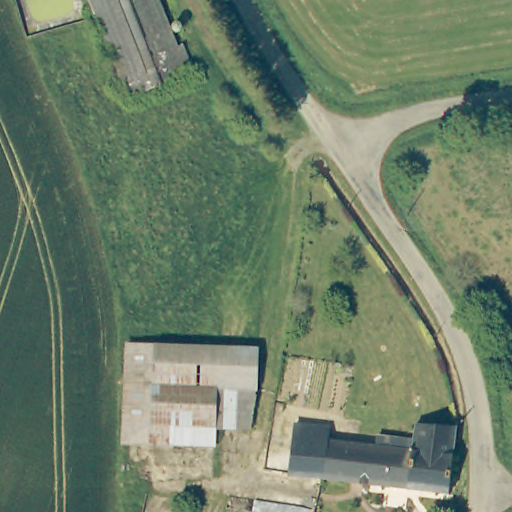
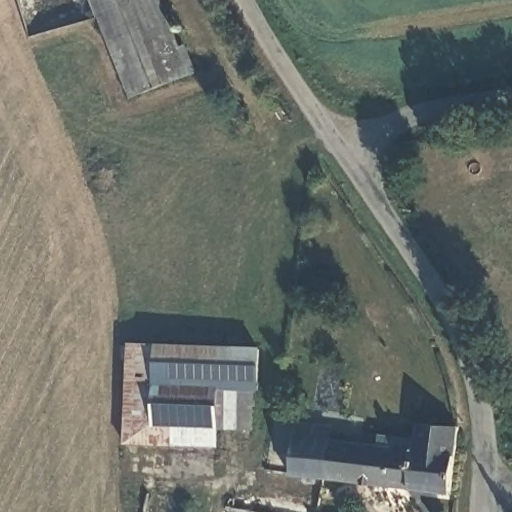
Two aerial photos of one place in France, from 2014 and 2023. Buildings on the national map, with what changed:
unchanged [(130,98),(93,0),(160,0),(189,75),(130,98)]
unchanged [(220,444),(128,442),(131,341),(223,344),(221,425),(220,444)]
unchanged [(257,346),(254,427),(221,425),(223,344),(257,346)]
unchanged [(274,415),(298,418),(298,424),(329,427),(327,442),(378,448),(379,437),(415,441),(417,424),(460,428),(452,497),(267,472),(274,415)]

